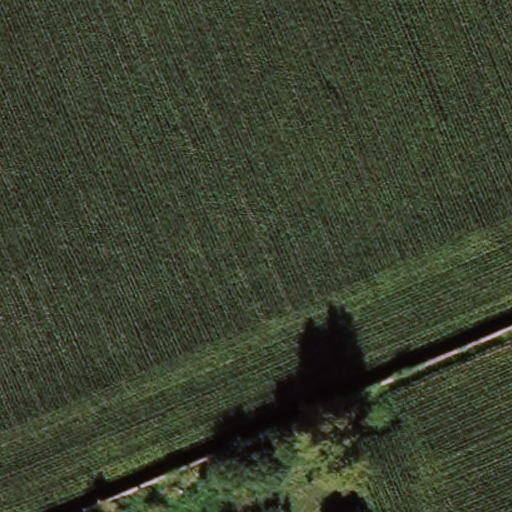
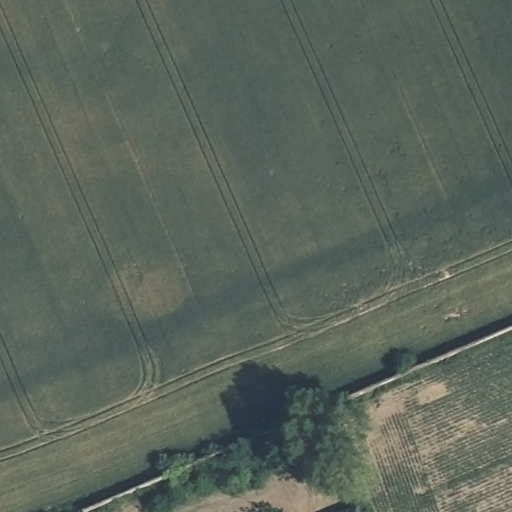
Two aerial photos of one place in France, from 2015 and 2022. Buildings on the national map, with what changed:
unchanged [(213,458),(219,476),(178,492),(173,476),(213,458)]
unchanged [(360,508),(362,512),(350,512),(360,508)]

